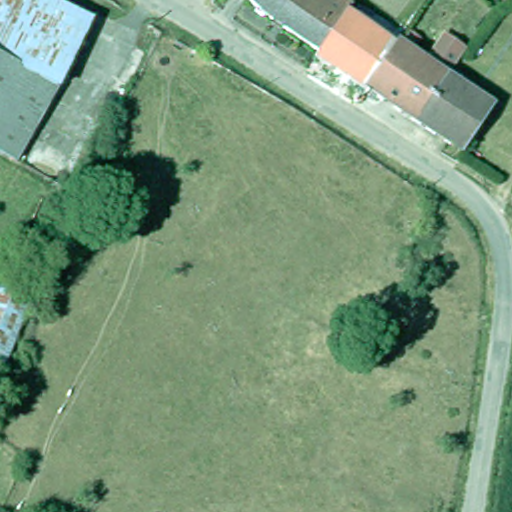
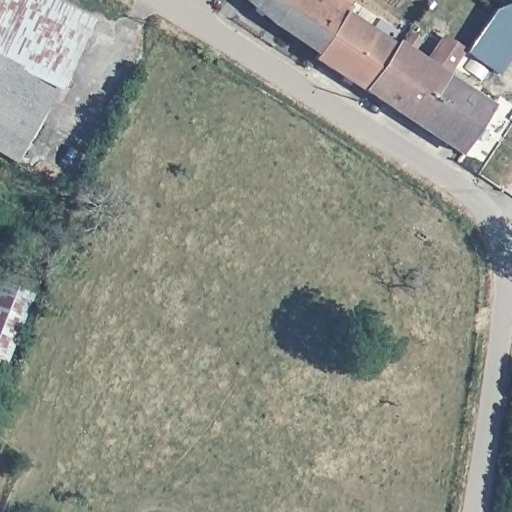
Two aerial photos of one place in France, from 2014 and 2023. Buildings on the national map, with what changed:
unchanged [(0,146),(0,0),(30,0),(87,24),(30,161),(5,149),(0,146)]
unchanged [(30,0),(70,0),(93,10),(87,24),(30,0)]
unchanged [(325,0),(347,15),(345,18),(323,56),(273,29),(243,0),(325,0)]
new [(497,7),(512,2),(512,56),(502,71),(469,49),(497,7)]
unchanged [(354,24),(359,16),(372,26),(368,33),(396,52),(368,95),(320,62),(323,56),(345,18),(354,24)]
unchanged [(447,82),(417,127),(368,95),(396,52),(399,49),(432,71),(452,43),(465,52),(447,82)]
unchanged [(462,157),(417,127),(447,82),(492,112),(462,157)]
unchanged [(3,361),(0,359),(0,279),(32,292),(3,361)]

